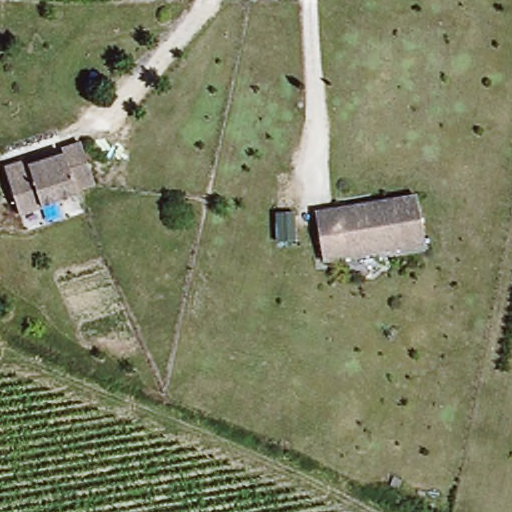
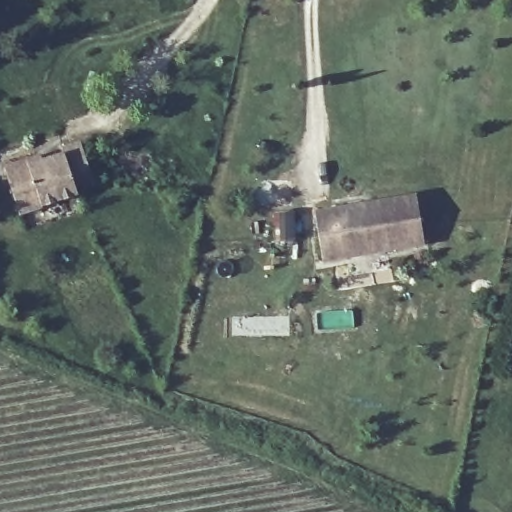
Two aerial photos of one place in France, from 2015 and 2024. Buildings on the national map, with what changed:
unchanged [(27,163),(65,151),(64,148),(80,141),(93,179),(77,182),(77,190),(16,209),(2,165),(26,159),(27,163)]
unchanged [(310,213),(412,196),(419,243),(317,260),(310,213)]
unchanged [(285,223),(284,250),(265,250),(266,223),(285,223)]

